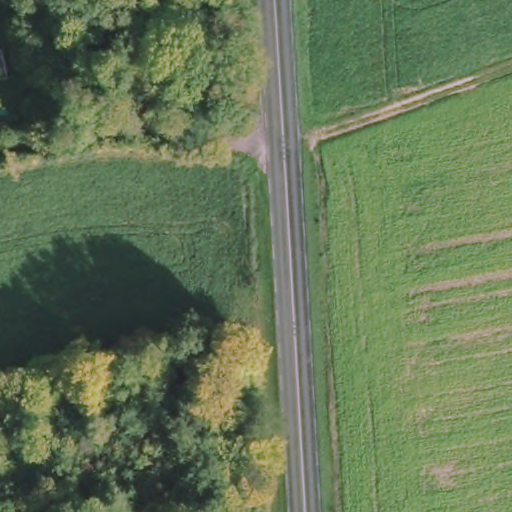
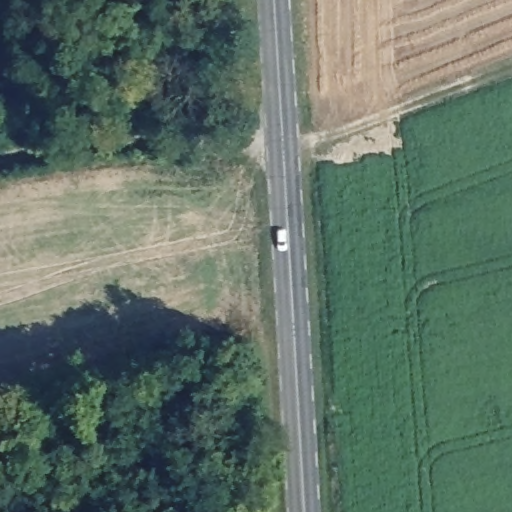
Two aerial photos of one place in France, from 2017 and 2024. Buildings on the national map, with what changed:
unchanged [(1,80),(0,80),(0,73),(1,80)]

